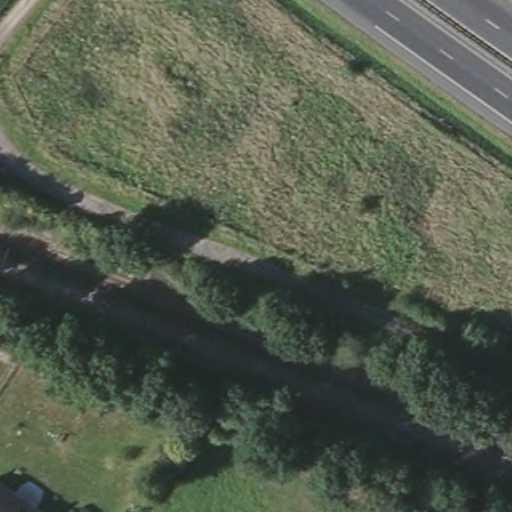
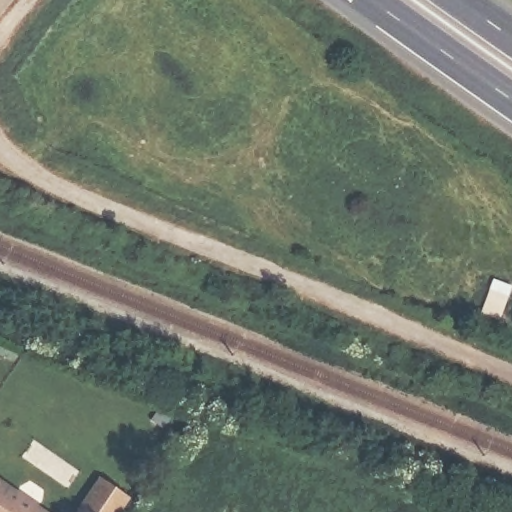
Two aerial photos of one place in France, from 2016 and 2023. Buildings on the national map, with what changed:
new [(99,481),(131,502),(124,512),(78,512),(99,481)]
unchanged [(0,484),(42,512),(0,512),(0,484)]

